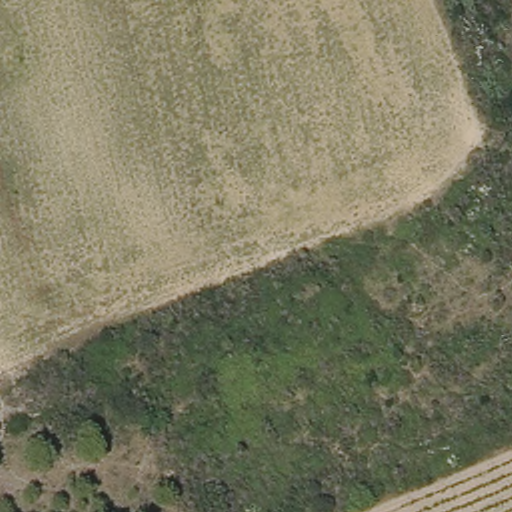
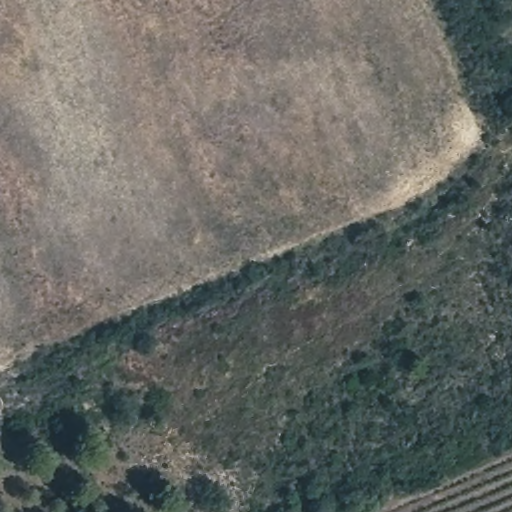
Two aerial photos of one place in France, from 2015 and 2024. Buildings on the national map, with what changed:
[]

